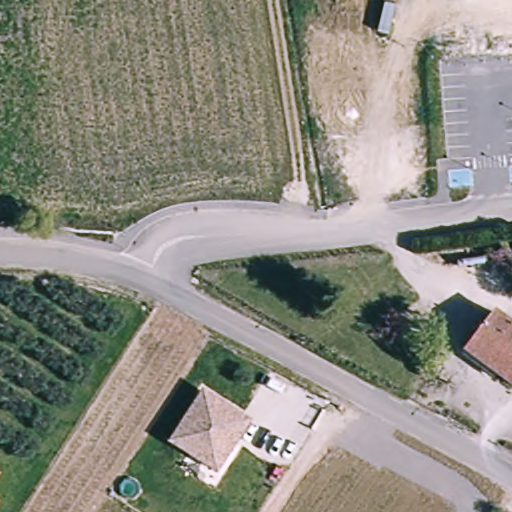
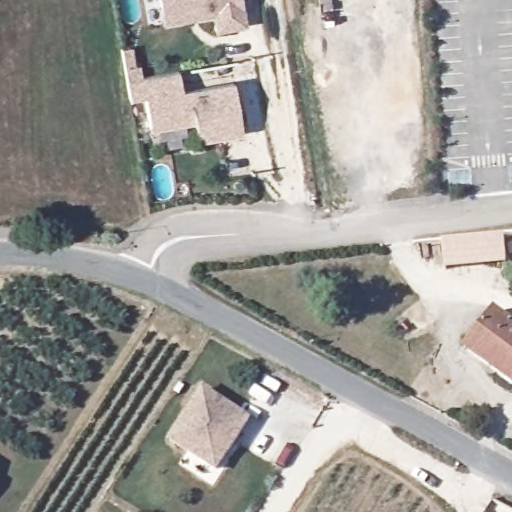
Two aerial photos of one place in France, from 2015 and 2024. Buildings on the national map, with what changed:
new [(246,25),(214,32),(211,15),(162,24),(159,0),(242,0),(246,25)]
new [(179,72),(181,90),(234,82),(240,132),(198,140),(194,121),(148,127),(143,96),(128,97),(126,80),(179,72)]
new [(506,265),(443,271),(440,240),(504,234),(506,265)]
unchanged [(458,353),(487,316),(512,334),(512,389),(509,392),(458,353)]
unchanged [(214,468),(168,438),(202,387),(248,417),(214,468)]

